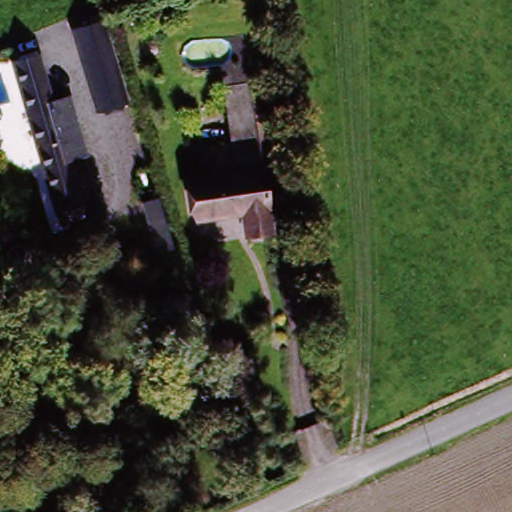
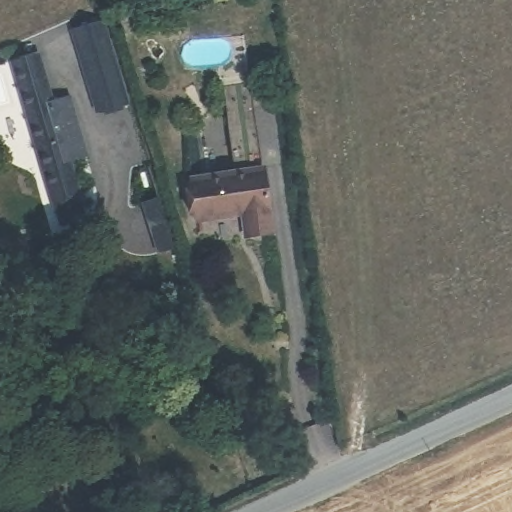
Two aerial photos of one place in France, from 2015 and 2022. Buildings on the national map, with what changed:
unchanged [(108,18),(136,103),(107,113),(79,28),(108,18)]
unchanged [(74,158),(89,212),(65,219),(20,62),(45,56),(57,99),(74,158)]
unchanged [(57,99),(75,95),(92,153),(74,158),(57,99)]
unchanged [(270,172),(279,236),(252,239),(250,218),(204,224),(197,181),(270,172)]

